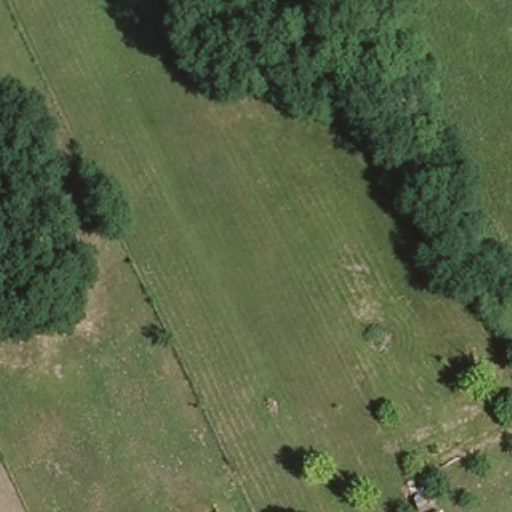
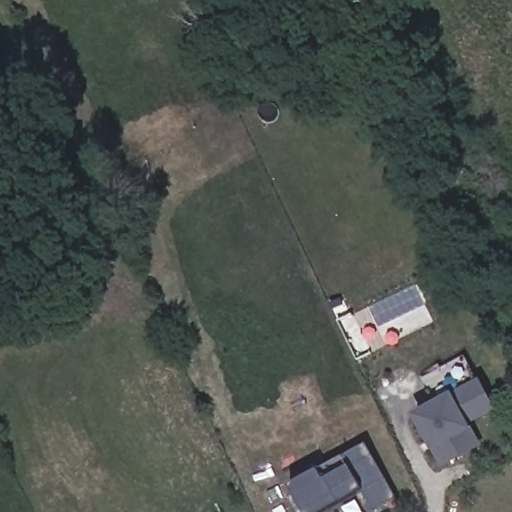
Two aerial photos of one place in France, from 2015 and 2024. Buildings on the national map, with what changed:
new [(433,392),(429,394),(421,379),(465,356),(466,363),(476,381),(481,378),(498,409),(472,424),(484,447),(442,469),(412,415),(438,401),(433,392)]
new [(319,470),(319,468),(365,444),(393,498),(369,512),(357,492),(320,512),(302,512),(287,486),(319,470)]

